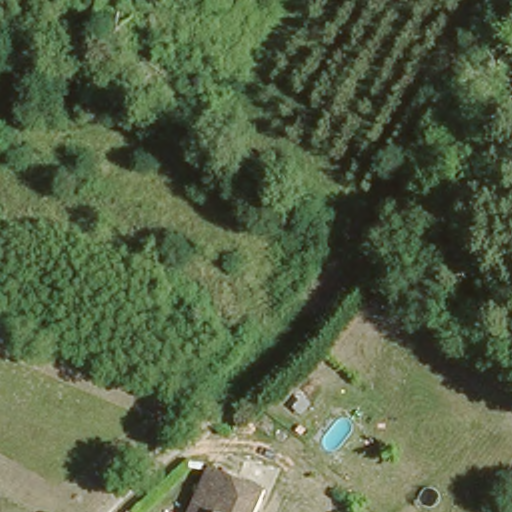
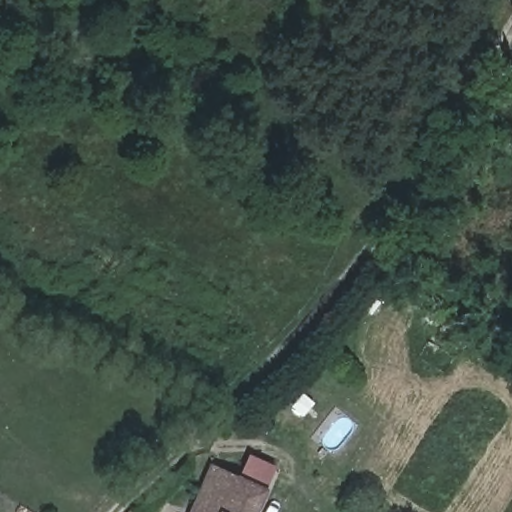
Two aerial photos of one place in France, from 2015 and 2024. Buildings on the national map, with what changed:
unchanged [(188,512),(200,485),(211,458),(237,471),(264,485),(252,512),(188,512)]
unchanged [(127,512),(129,510),(134,512),(127,512)]

